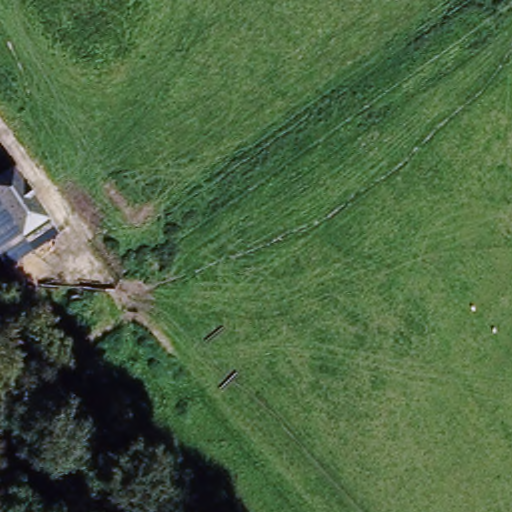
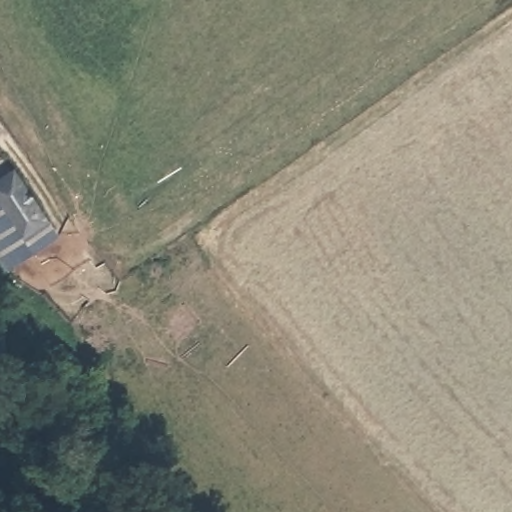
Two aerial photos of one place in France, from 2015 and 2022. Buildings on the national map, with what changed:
unchanged [(3,153),(13,168),(0,178),(0,155),(3,153)]
unchanged [(21,236),(0,207),(0,178),(13,168),(47,218),(21,236)]
unchanged [(0,251),(0,207),(21,236),(0,251)]

